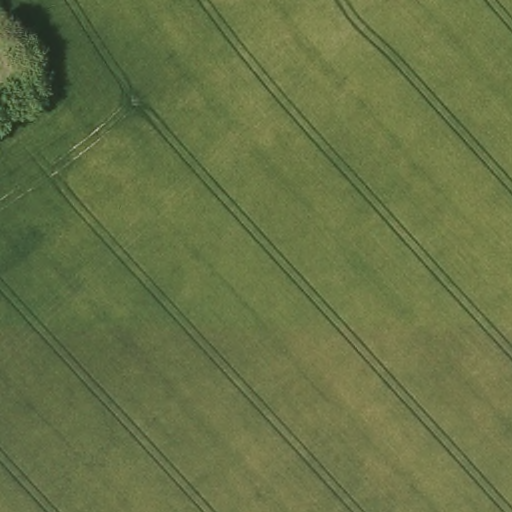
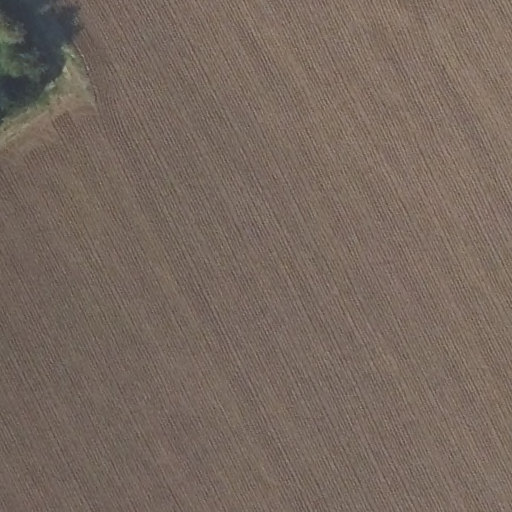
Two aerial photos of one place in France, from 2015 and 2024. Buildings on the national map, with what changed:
[]

